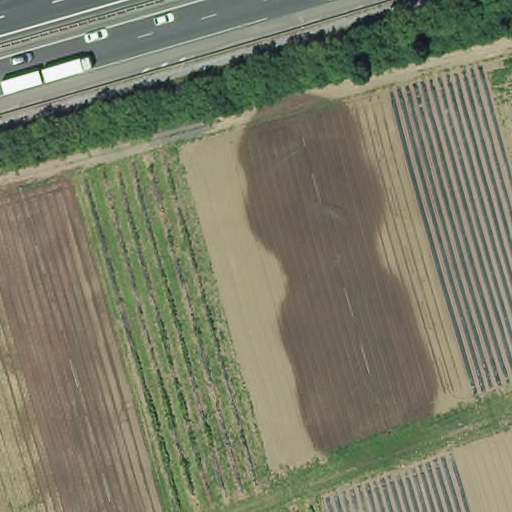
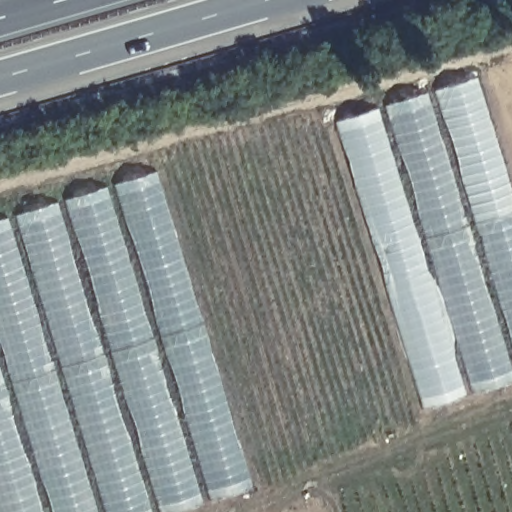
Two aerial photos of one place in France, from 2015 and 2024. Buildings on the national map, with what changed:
new [(512,189),(512,385),(424,413),(336,122),(479,82),(512,189)]
new [(156,171),(254,486),(175,512),(0,512),(0,220),(156,171)]

